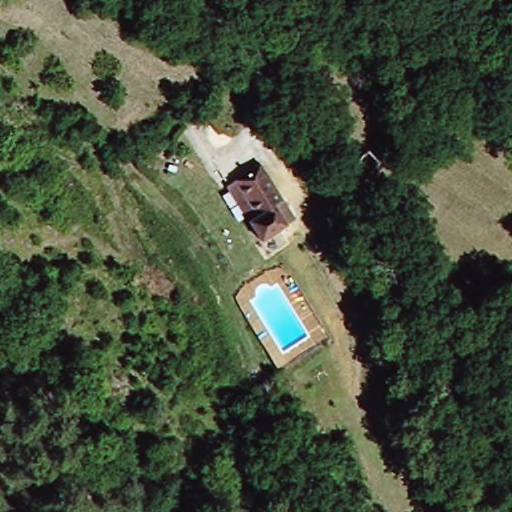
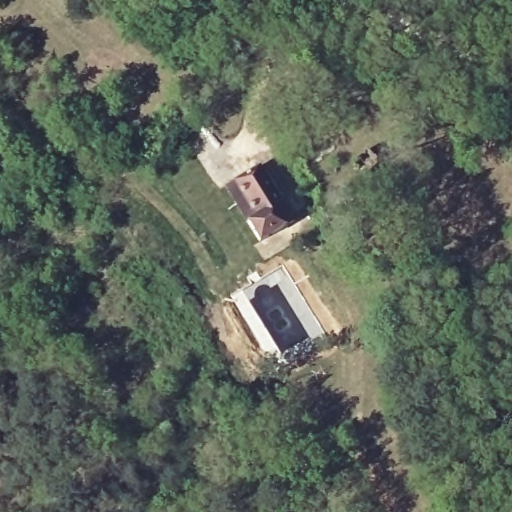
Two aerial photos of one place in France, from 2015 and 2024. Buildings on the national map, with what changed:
unchanged [(296,215),(262,237),(250,220),(225,182),(233,176),(259,159),(296,215)]
unchanged [(299,346),(305,356),(296,362),(290,352),(299,346)]

